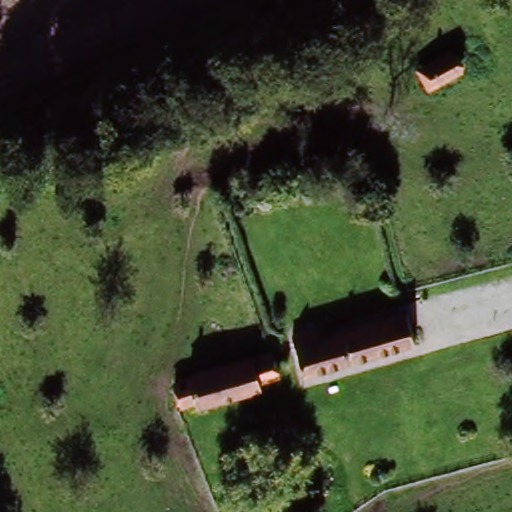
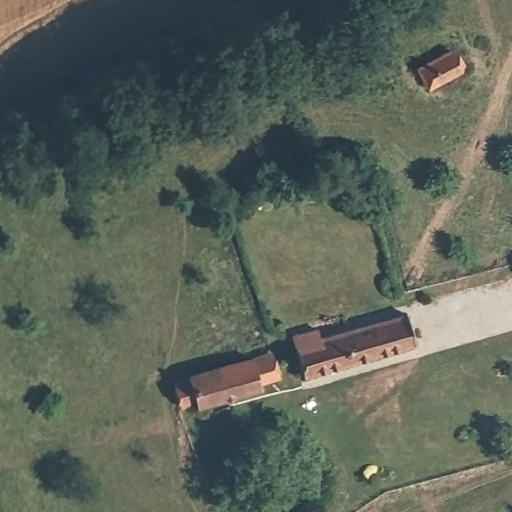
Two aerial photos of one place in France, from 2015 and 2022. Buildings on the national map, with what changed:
unchanged [(467,73),(430,87),(422,63),(458,49),(467,73)]
unchanged [(296,335),(324,327),(328,337),(405,314),(415,349),(310,379),(296,335)]
unchanged [(181,409),(176,391),(195,385),(193,378),(285,350),(294,378),(181,409)]

